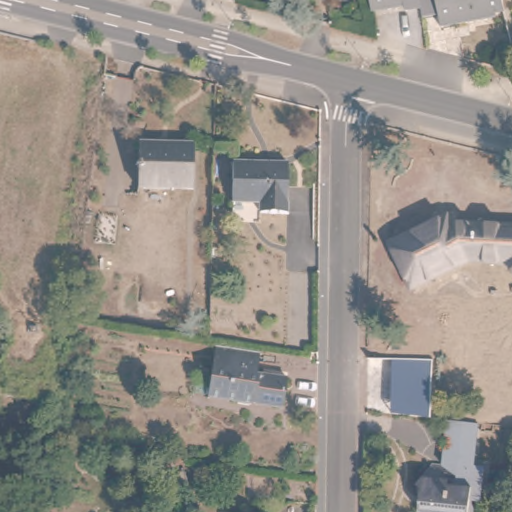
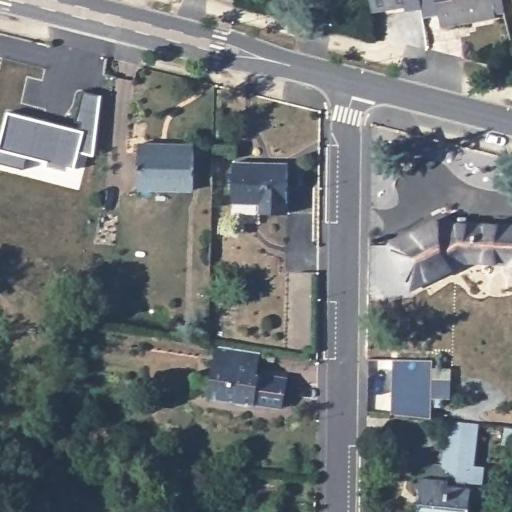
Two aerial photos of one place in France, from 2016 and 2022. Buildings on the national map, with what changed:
unchanged [(407,11),(406,6),(373,10),(371,0),(421,0),(422,9),(407,11)]
unchanged [(506,10),(468,17),(469,23),(443,28),(440,14),(427,16),(424,0),(504,0),(506,10)]
new [(25,157),(22,169),(0,163),(0,131),(5,110),(75,128),(77,122),(72,121),(81,90),(99,95),(92,156),(77,151),(73,168),(25,157)]
unchanged [(195,190),(138,189),(139,144),(195,145),(195,190)]
unchanged [(233,163),(288,165),(287,215),(261,214),(262,204),(232,203),(233,163)]
unchanged [(455,221),(512,222),(512,256),(474,255),(418,281),(398,241),(452,214),(455,221)]
unchanged [(261,358),(257,379),(287,384),(282,413),(255,409),(250,411),(243,410),(238,409),(237,407),(208,401),(208,398),(216,350),(261,358)]
unchanged [(393,361),(433,361),(431,418),(392,414),(393,361)]
unchanged [(480,474),(451,471),(456,426),(485,429),(481,464),(480,474)]
unchanged [(488,499),(477,499),(475,512),(425,512),(425,506),(423,490),(437,470),(451,471),(480,474),(481,464),(492,465),(488,499)]

